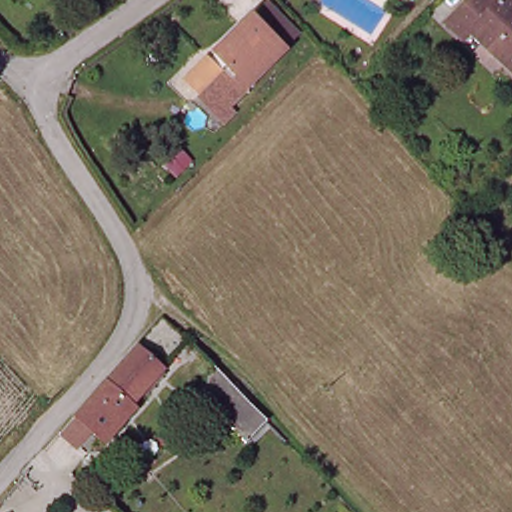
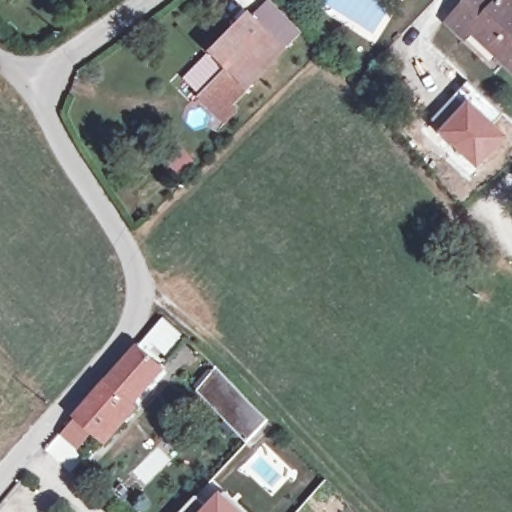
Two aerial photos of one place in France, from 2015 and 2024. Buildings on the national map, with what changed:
unchanged [(501,1),(503,0),(512,0),(512,68),(473,31),(466,39),(450,22),(470,0),(500,0),(501,1)]
unchanged [(176,84),(188,72),(201,61),(220,81),(225,75),(211,60),(265,6),(298,40),(225,112),(213,123),(195,104),(176,84)]
new [(467,81),(503,115),(496,121),(469,98),(437,130),(429,122),(467,81)]
new [(469,98),(496,121),(510,135),(478,170),(437,130),(469,98)]
unchanged [(167,165),(184,149),(195,160),(178,177),(167,165)]
unchanged [(188,340),(102,440),(76,417),(164,318),(188,340)]
unchanged [(248,442),(197,390),(218,368),(240,390),(265,415),(270,420),(248,442)]
new [(207,503),(221,488),(248,512),(178,512),(196,493),(207,503)]

